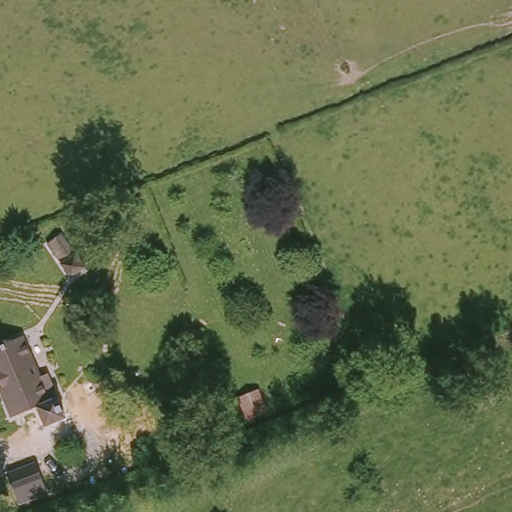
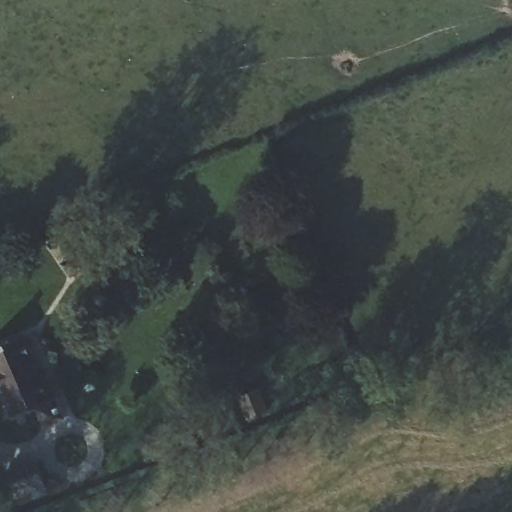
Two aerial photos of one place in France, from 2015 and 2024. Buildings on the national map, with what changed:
unchanged [(65,244),(89,277),(74,287),(50,254),(65,244)]
unchanged [(25,336),(42,377),(50,373),(60,397),(14,417),(1,388),(4,387),(0,378),(0,347),(25,336)]
unchanged [(235,395),(254,387),(262,411),(244,418),(235,395)]

